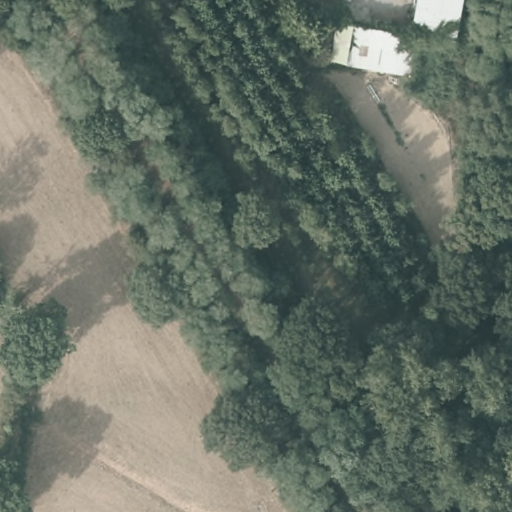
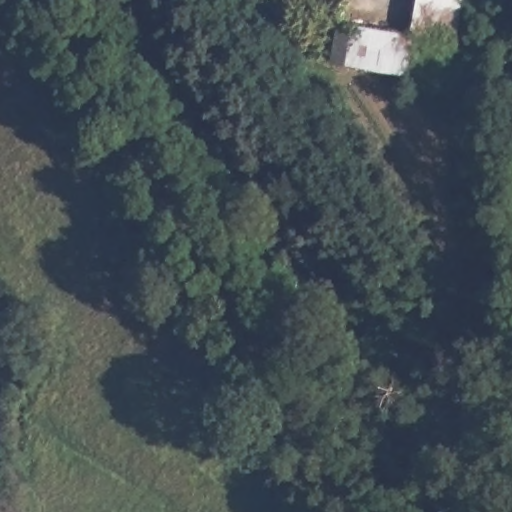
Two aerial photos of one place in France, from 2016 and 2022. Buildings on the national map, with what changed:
unchanged [(415,0),(468,0),(459,46),(418,38),(412,76),(345,64),(352,21),(409,31),(415,0)]

